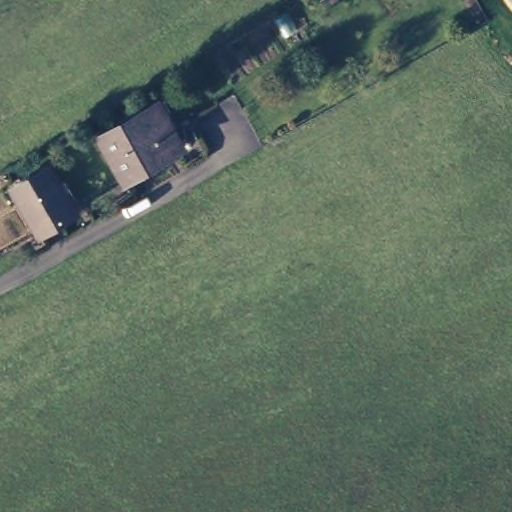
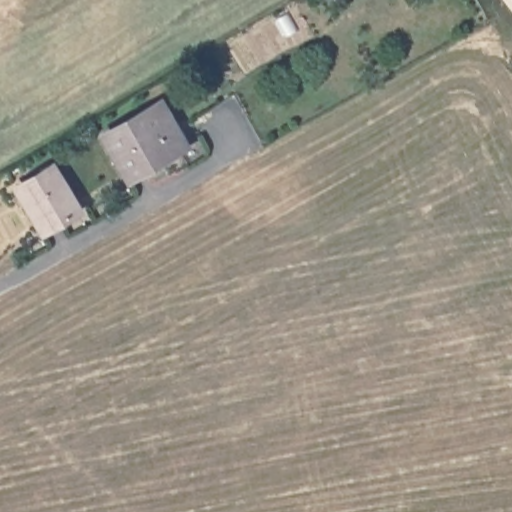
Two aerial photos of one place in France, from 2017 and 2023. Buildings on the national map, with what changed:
unchanged [(319,3),(316,0),(324,0),(319,3)]
unchanged [(135,112),(126,100),(150,81),(161,94),(189,145),(122,181),(95,132),(135,112)]
unchanged [(39,234),(32,224),(13,189),(47,168),(55,183),(61,180),(73,200),(68,203),(74,214),(39,234)]

